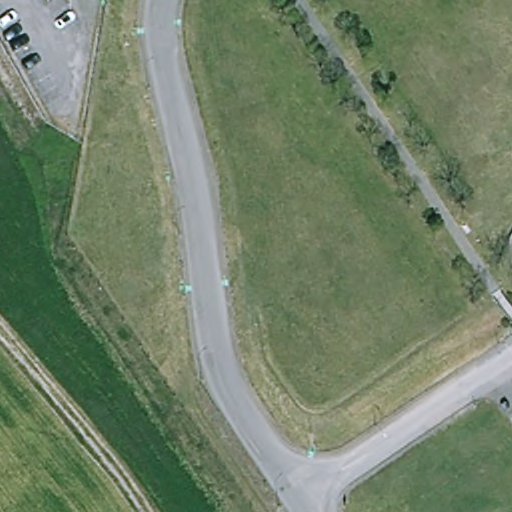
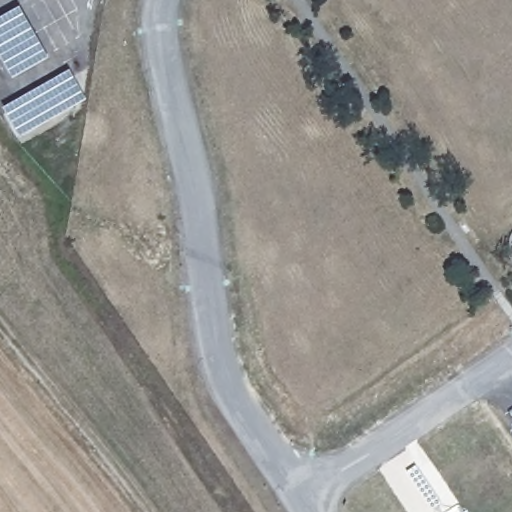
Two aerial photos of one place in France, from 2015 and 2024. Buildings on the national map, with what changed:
new [(28,8),(57,57),(21,78),(0,43),(0,25),(28,8)]
new [(77,71),(93,97),(24,139),(8,112),(77,71)]

